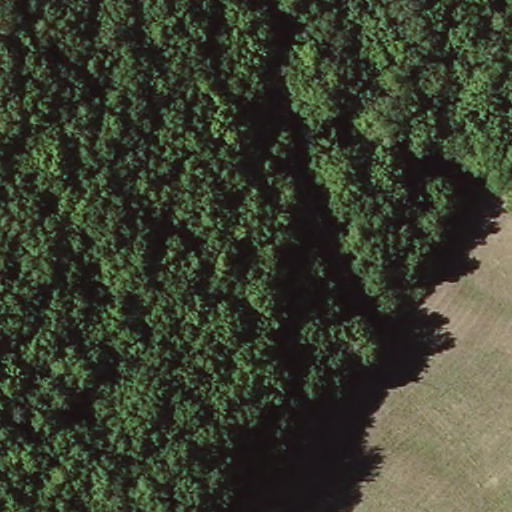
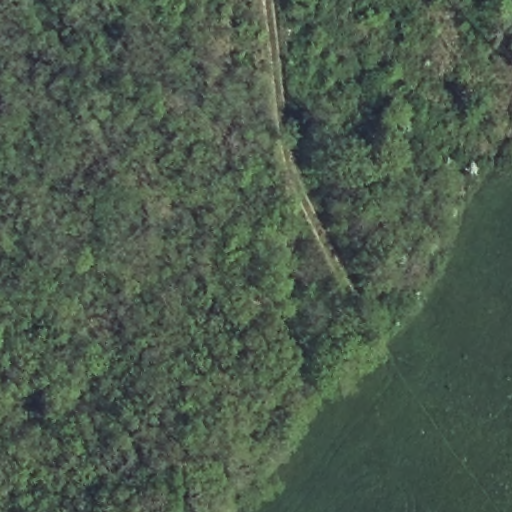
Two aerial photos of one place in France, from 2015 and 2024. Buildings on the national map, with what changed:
unchanged [(215,487),(226,474),(243,488),(230,501),(215,487)]

